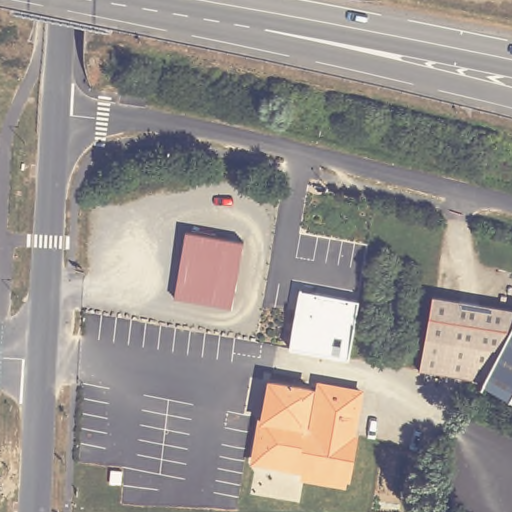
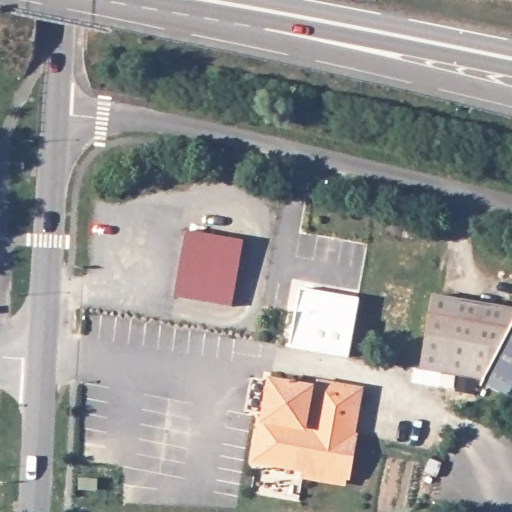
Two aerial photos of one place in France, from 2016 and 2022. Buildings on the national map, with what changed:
unchanged [(244,243),(234,306),(175,295),(186,233),(244,243)]
unchanged [(487,367),(424,356),(437,282),(512,295),(512,320),(505,333),(487,367)]
unchanged [(361,301),(351,360),(289,351),(300,289),(361,301)]
unchanged [(487,367),(505,333),(512,320),(512,384),(486,370),(487,367)]
unchanged [(358,391),(352,437),(355,438),(348,479),(346,478),(345,485),(303,479),(305,472),(273,468),(274,459),(257,456),(267,384),(317,392),(317,385),(358,391)]
unchanged [(101,481),(100,493),(89,492),(91,480),(101,481)]

